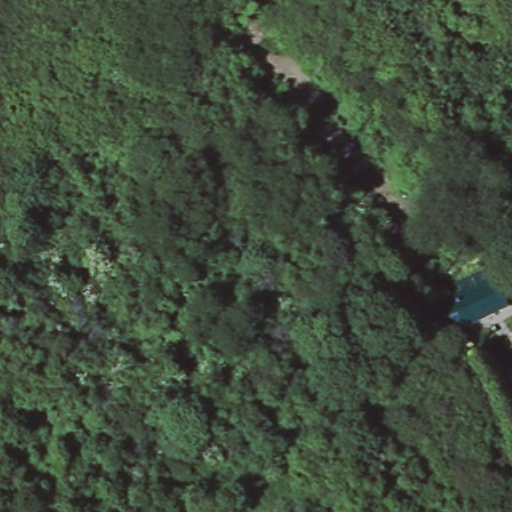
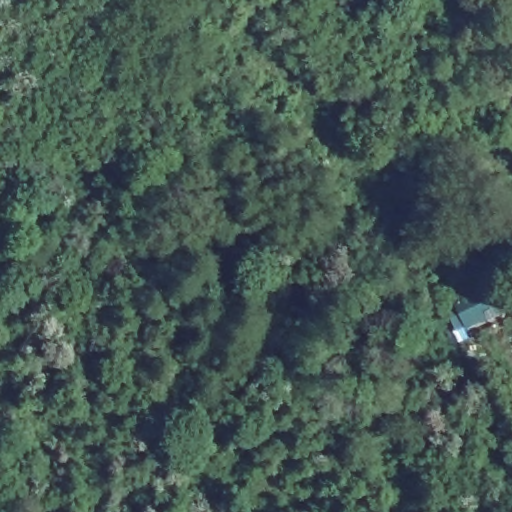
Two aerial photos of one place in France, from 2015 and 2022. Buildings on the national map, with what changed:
unchanged [(491,274),(508,304),(467,328),(446,297),(491,274)]

